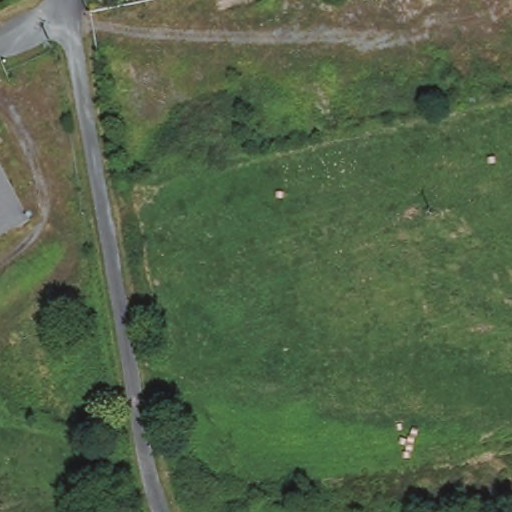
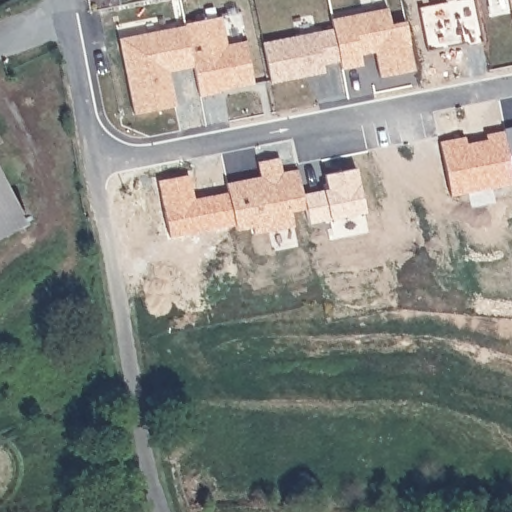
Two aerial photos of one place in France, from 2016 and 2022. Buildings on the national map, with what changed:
new [(510,0),(512,0),(512,9),(510,0)]
new [(363,67),(342,71),(341,63),(335,31),(332,20),(389,9),(392,25),(407,22),(417,71),(381,78),(376,54),(362,56),(363,67)]
new [(201,97),(192,66),(185,25),(223,17),(228,44),(247,41),(255,84),(236,88),(221,91),(201,97)]
new [(134,112),(119,38),(185,25),(192,66),(169,70),(175,104),(134,112)]
new [(335,31),(341,63),(324,67),(326,75),(272,86),(263,45),(335,31)]
new [(505,128),(512,127),(512,167),(505,128)]
new [(288,206),(292,226),(270,230),(269,227),(254,230),(252,223),(237,226),(230,185),(263,178),(261,163),(277,159),(282,174),(294,171),(301,203),(288,206)]
new [(311,217),(307,195),(331,190),(328,175),(360,169),(368,213),(333,221),(312,225),(311,217)]
unchanged [(0,228),(0,172),(25,214),(0,228)]
unchanged [(134,512),(110,512),(109,508),(130,503),(134,512)]

